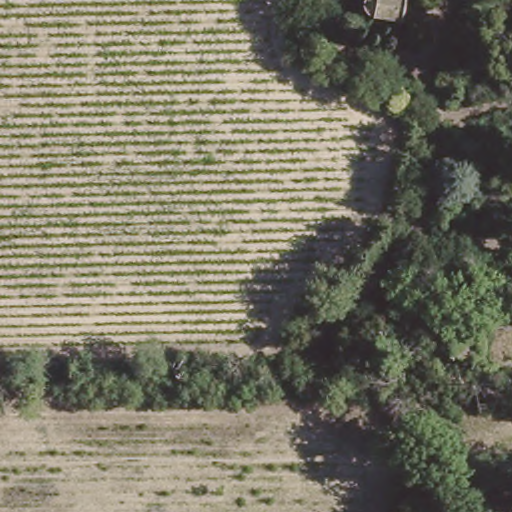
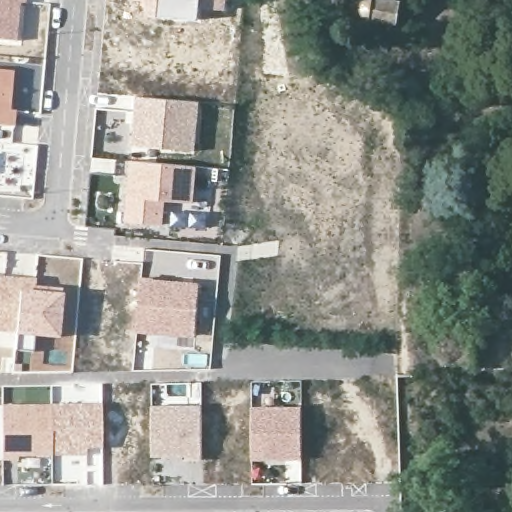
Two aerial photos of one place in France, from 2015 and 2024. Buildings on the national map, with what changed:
new [(0,41),(0,0),(25,0),(18,42),(0,41)]
new [(201,10),(200,21),(142,15),(143,1),(132,0),(227,0),(226,11),(201,10)]
unchanged [(373,12),(370,10),(366,7),(364,4),(363,0),(406,0),(403,17),(375,13),(373,12)]
new [(10,110),(16,110),(13,127),(0,126),(0,70),(13,71),(10,110)]
new [(135,95),(200,101),(195,151),(131,145),(135,95)]
new [(128,160),(197,166),(194,201),(165,200),(163,225),(121,222),(128,160)]
new [(35,292),(61,295),(58,336),(36,333),(35,349),(16,348),(17,331),(0,330),(0,276),(35,280),(35,292)]
new [(199,281),(196,336),(137,332),(141,276),(199,281)]
new [(447,335),(473,335),(473,360),(446,360),(447,335)]
new [(102,449),(86,449),(86,457),(17,457),(17,461),(0,461),(0,405),(101,403),(102,449)]
new [(186,460),(186,456),(152,456),(151,405),(201,405),(202,460),(186,460)]
new [(253,406),(301,406),(302,460),(253,458),(253,406)]

